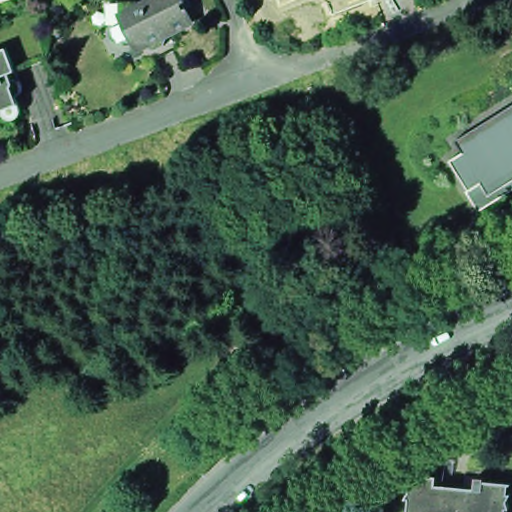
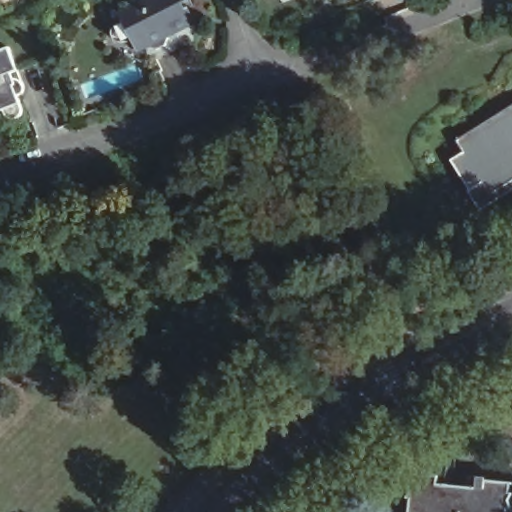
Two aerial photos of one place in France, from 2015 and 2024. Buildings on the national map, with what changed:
unchanged [(149,0),(187,0),(188,0),(182,4),(185,10),(189,9),(195,20),(168,35),(170,37),(167,45),(158,50),(151,47),(149,44),(139,49),(135,41),(121,42),(118,41),(115,40),(113,36),(113,34),(113,30),(115,27),(118,25),(121,24),(123,24),(122,2),(149,0)]
unchanged [(42,29),(53,58),(19,70),(11,48),(8,41),(42,29)]
unchanged [(25,85),(25,87),(25,90),(24,93),(22,95),(20,96),(24,107),(24,111),(23,114),(21,117),(19,119),(15,120),(12,119),(9,117),(7,115),(5,110),(0,112),(0,52),(11,48),(19,70),(25,85)]
unchanged [(464,139),(512,108),(512,195),(485,212),(454,164),(467,152),(464,139)]
unchanged [(444,470),(443,479),(491,483),(492,475),(512,477),(512,512),(415,512),(419,467),(444,470)]

